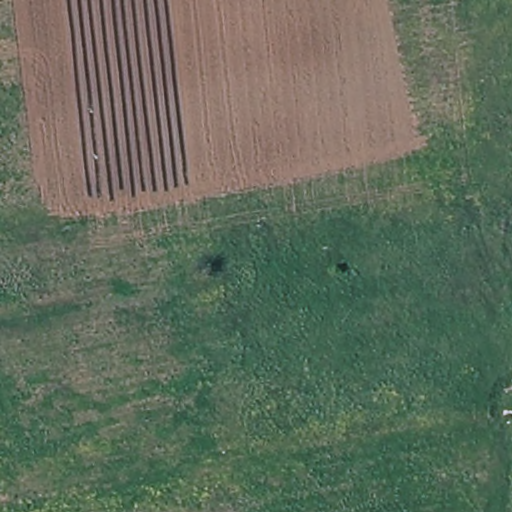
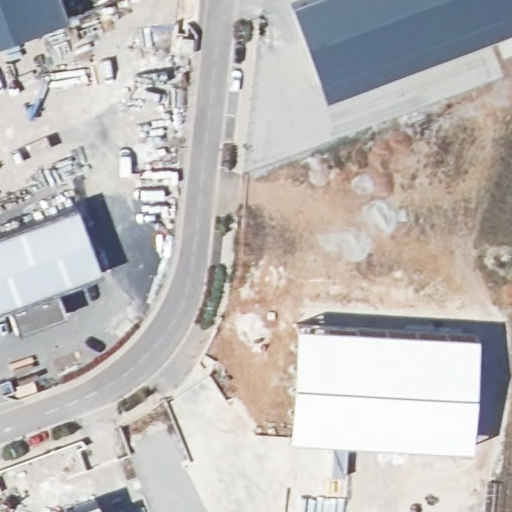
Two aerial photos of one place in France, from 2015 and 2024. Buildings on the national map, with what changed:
new [(61,0),(68,17),(0,41),(0,0),(61,0)]
new [(291,5),(303,0),(512,0),(512,31),(326,97),(291,5)]
new [(78,203),(104,273),(60,290),(69,313),(20,331),(10,305),(0,309),(0,232),(78,203)]
new [(289,437),(295,323),(477,334),(470,445),(289,437)]
new [(95,496),(101,512),(52,512),(95,496)]

